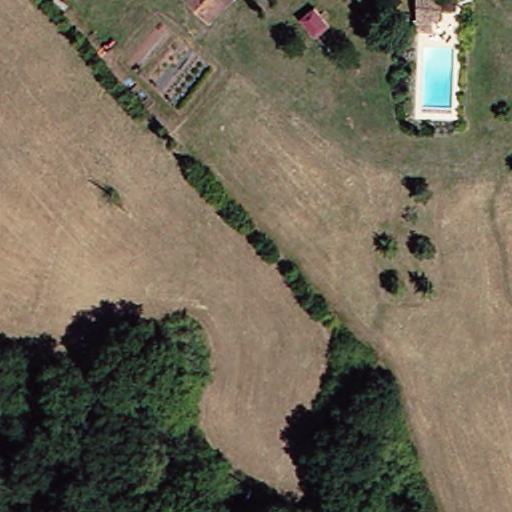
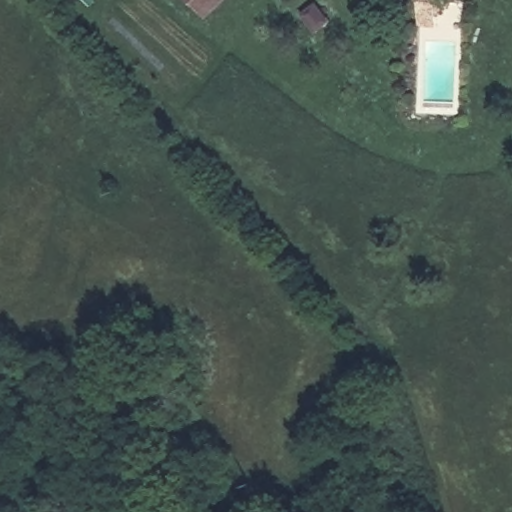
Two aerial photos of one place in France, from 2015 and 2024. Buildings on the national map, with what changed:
unchanged [(208,6),(203,0),(214,0),(208,6)]
unchanged [(447,12),(443,12),(444,24),(425,26),(425,0),(447,0),(447,12)]

